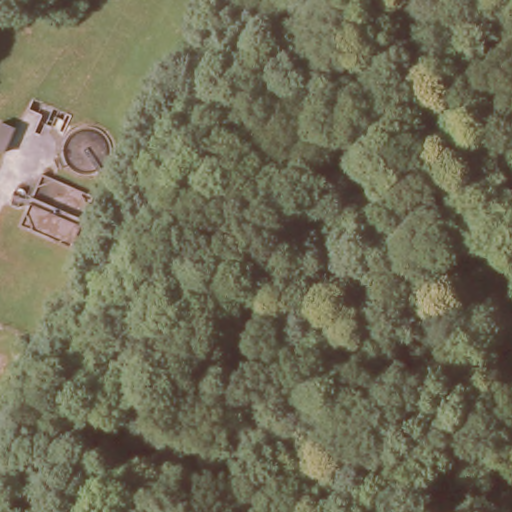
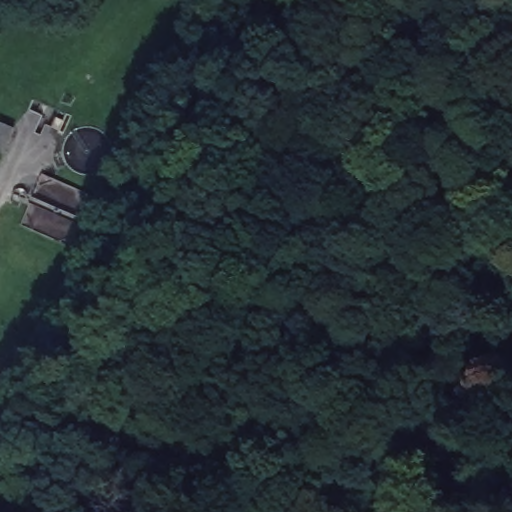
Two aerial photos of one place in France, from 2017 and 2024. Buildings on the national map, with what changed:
unchanged [(0,145),(0,128),(5,118),(18,124),(7,148),(0,145)]

